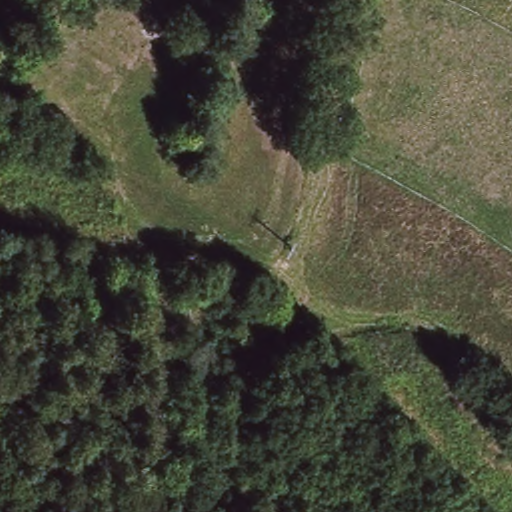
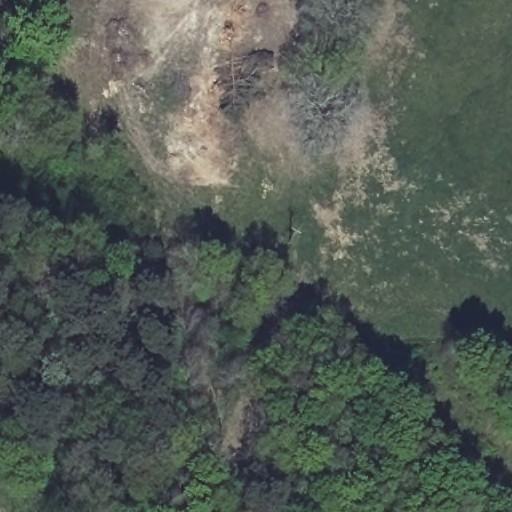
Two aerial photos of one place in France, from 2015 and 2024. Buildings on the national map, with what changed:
[]

